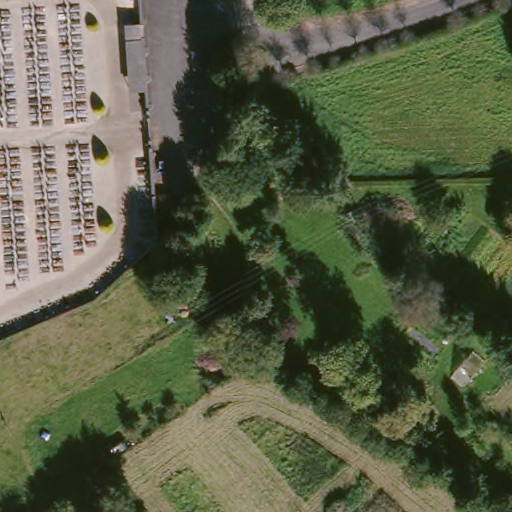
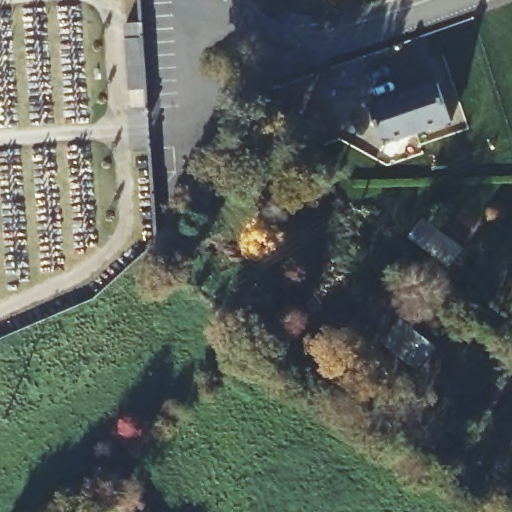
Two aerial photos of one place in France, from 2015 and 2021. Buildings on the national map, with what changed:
new [(438,86),(448,126),(378,143),(368,103),(438,86)]

